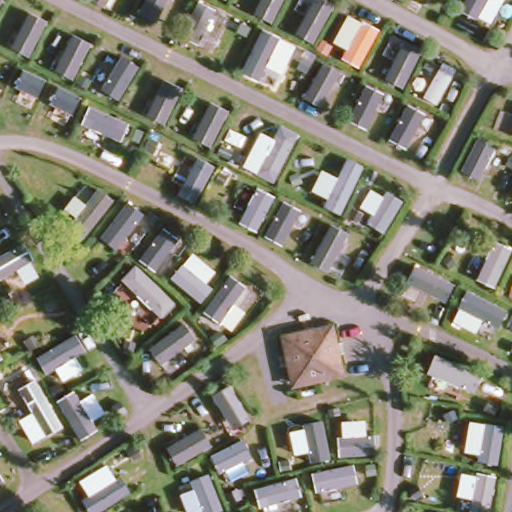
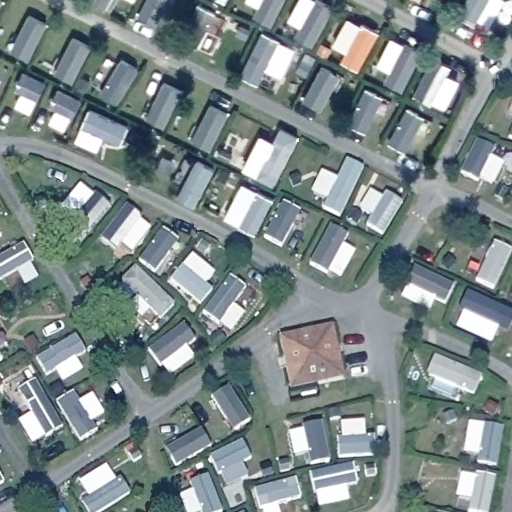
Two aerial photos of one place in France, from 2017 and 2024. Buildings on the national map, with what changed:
unchanged [(347,378),(292,387),(281,336),(336,326),(347,378)]

